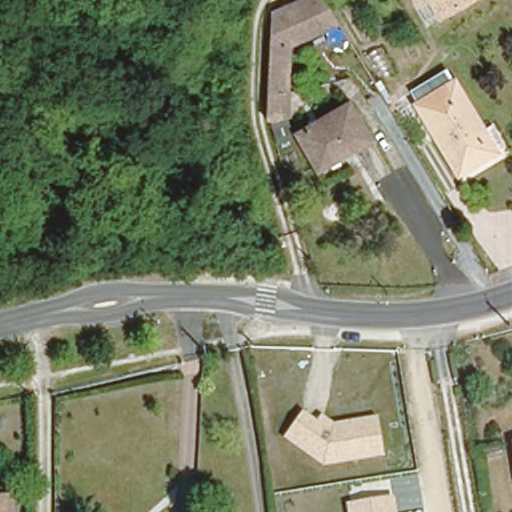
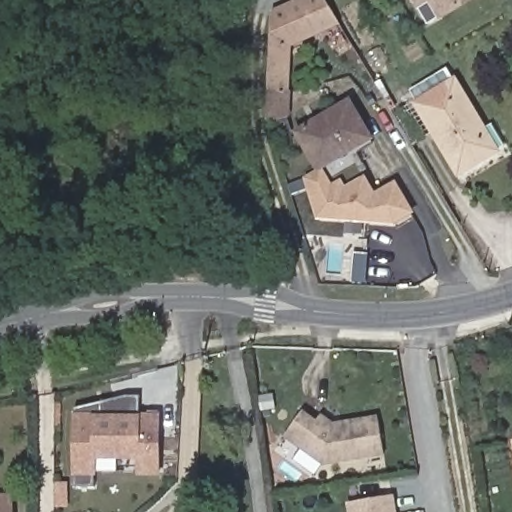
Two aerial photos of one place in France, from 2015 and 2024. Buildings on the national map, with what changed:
unchanged [(333,16),(286,35),(289,104),(269,107),(266,4),(276,0),(324,0),(333,16)]
unchanged [(418,0),(456,0),(427,16),(418,0)]
unchanged [(481,122),(489,122),(502,144),(457,171),(408,90),(447,66),(481,122)]
unchanged [(351,146),(347,145),(317,164),(297,130),(349,99),(371,135),(351,146)]
new [(341,219),(326,218),(319,217),(307,180),(320,172),(330,190),(339,185),(343,192),(364,180),(374,197),(395,185),(411,212),(394,222),(386,222),(374,220),(341,219)]
new [(138,418),(158,418),(157,471),(137,472),(136,457),(94,457),(94,486),(73,486),(73,409),(125,395),(138,396),(138,418)]
unchanged [(384,456),(326,465),(285,438),(304,410),(319,420),(322,415),(333,422),(379,415),(384,456)]
unchanged [(11,490),(11,512),(0,512),(0,490),(11,490)]
unchanged [(397,512),(349,512),(347,501),(395,495),(397,512)]

